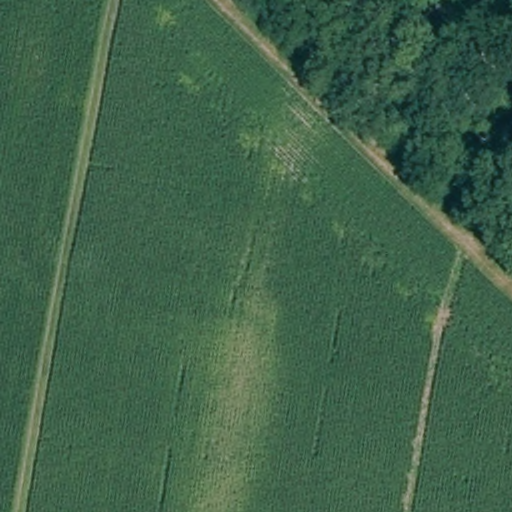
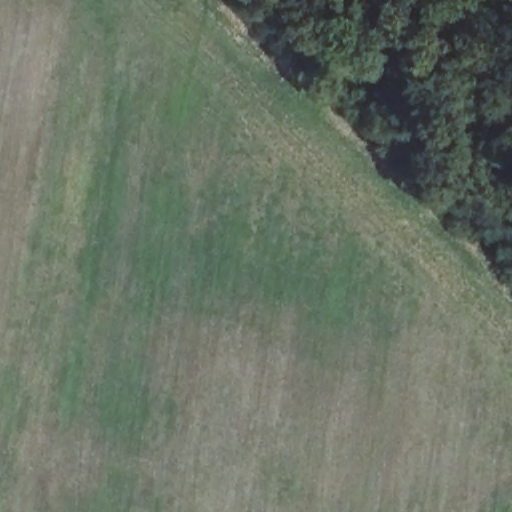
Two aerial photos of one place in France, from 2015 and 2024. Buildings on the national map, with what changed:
[]

